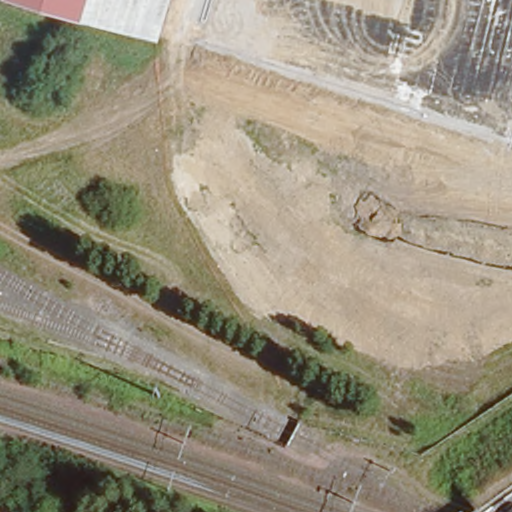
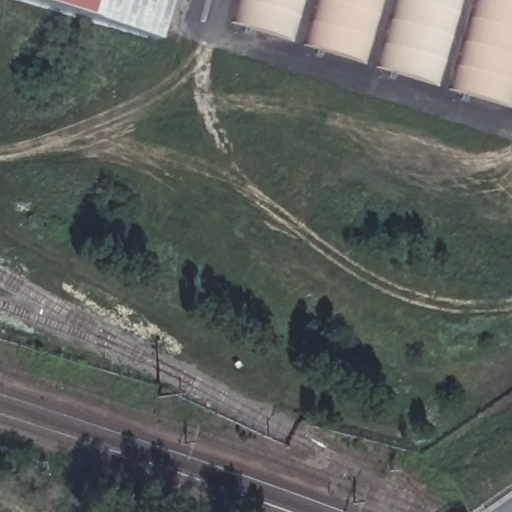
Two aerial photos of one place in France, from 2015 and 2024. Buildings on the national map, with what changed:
unchanged [(152,36),(25,0),(163,0),(152,36)]
new [(233,22),(239,0),(306,0),(295,39),(233,22)]
new [(368,63),(304,44),(317,0),(386,0),(368,63)]
new [(378,68),(398,0),(463,0),(438,84),(378,68)]
new [(511,106),(449,88),(475,0),(512,0),(512,103),(511,106)]

